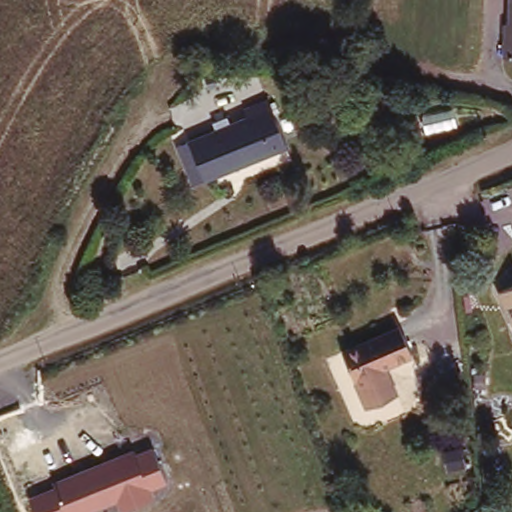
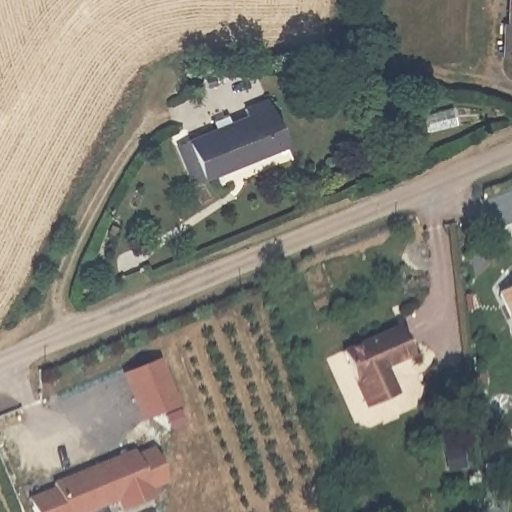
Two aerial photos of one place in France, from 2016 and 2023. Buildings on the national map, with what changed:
unchanged [(505,0),(512,0),(512,53),(498,52),(499,19),(504,18),(505,0)]
unchanged [(209,180),(189,140),(250,114),(248,106),(270,96),(293,145),(209,180)]
unchanged [(389,329),(402,358),(377,368),(383,386),(355,398),(334,352),(389,329)]
new [(164,358),(182,406),(142,422),(121,374),(164,358)]
unchanged [(29,500),(56,490),(53,482),(131,451),(133,456),(154,448),(167,481),(150,488),(154,500),(121,512),(119,512),(115,502),(91,512),(33,512),(29,500)]

